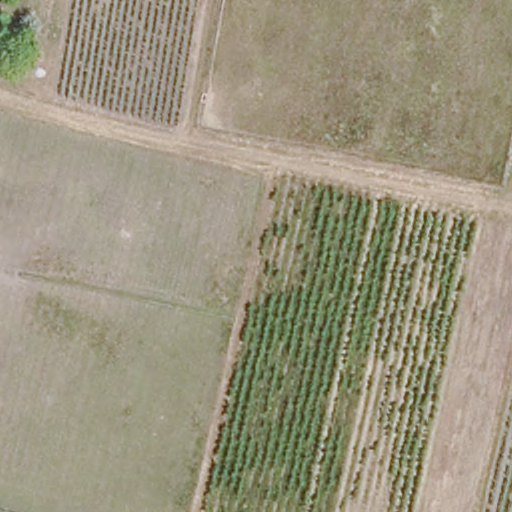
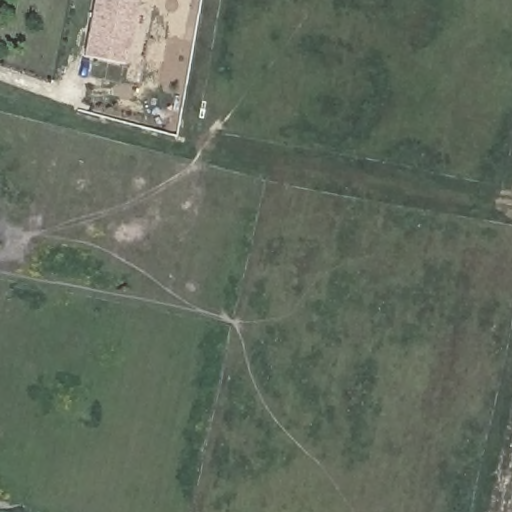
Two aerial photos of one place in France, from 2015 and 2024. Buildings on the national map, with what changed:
new [(92,0),(135,0),(138,0),(126,64),(82,56),(92,0)]

